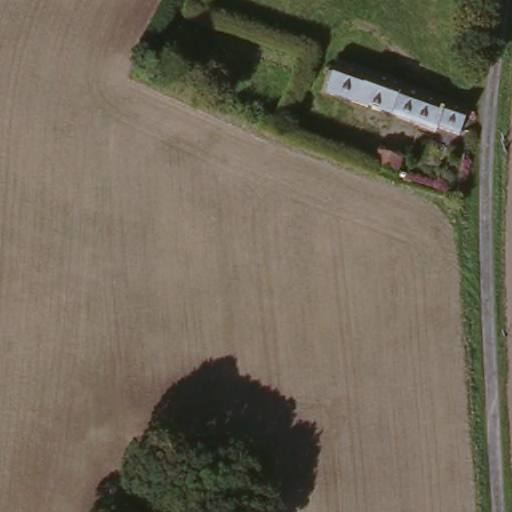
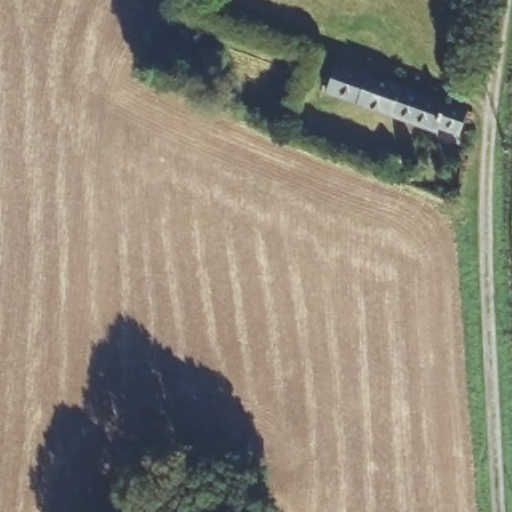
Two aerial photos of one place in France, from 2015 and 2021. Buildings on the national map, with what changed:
unchanged [(462,125),(440,116),(435,130),(328,91),(338,62),(470,107),(462,125)]
unchanged [(396,185),(375,179),(382,147),(405,153),(396,185)]

